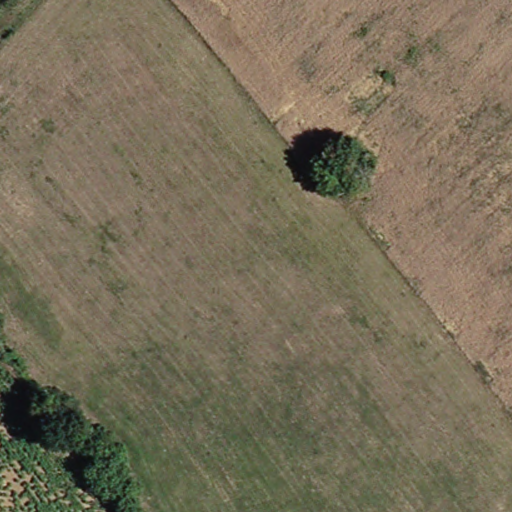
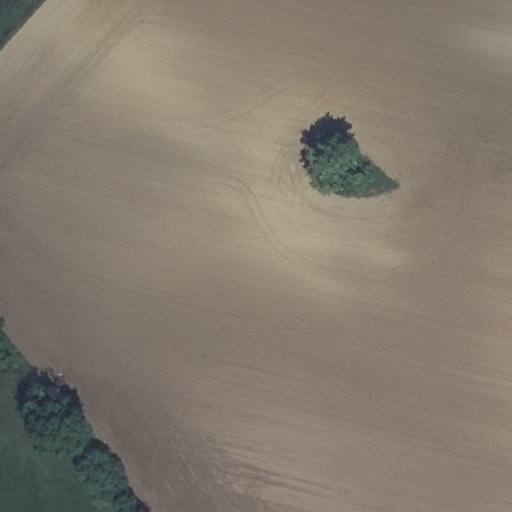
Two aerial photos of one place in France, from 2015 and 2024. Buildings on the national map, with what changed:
unchanged [(377,160),(355,184),(342,173),(365,148),(377,160)]

